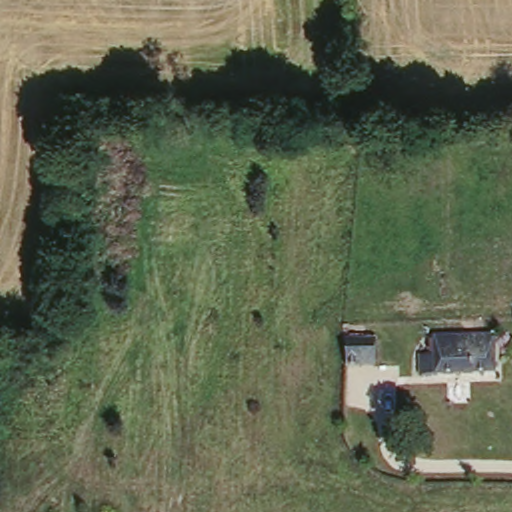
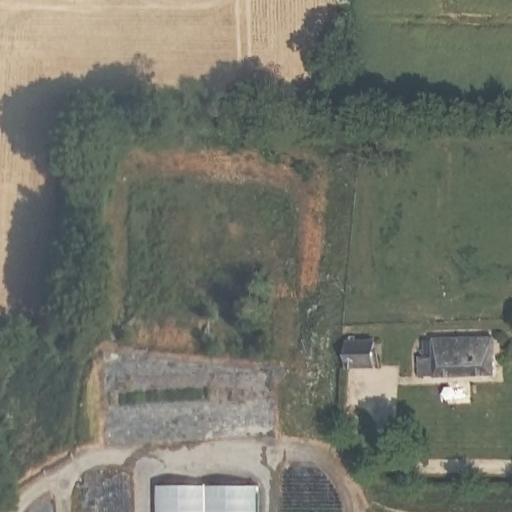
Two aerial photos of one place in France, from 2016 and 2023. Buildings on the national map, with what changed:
unchanged [(182,122),(181,142),(149,141),(149,121),(182,122)]
unchanged [(381,341),(382,365),(356,366),(356,341),(381,341)]
unchanged [(421,357),(433,357),(432,341),(492,342),(492,375),(434,377),(421,377),(421,357)]
new [(257,482),(258,512),(156,512),(156,486),(257,482)]

